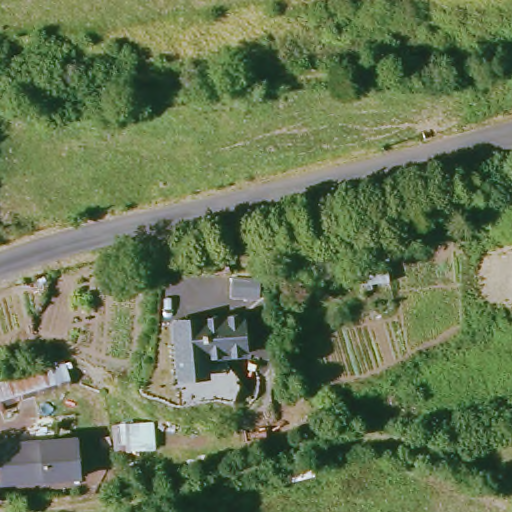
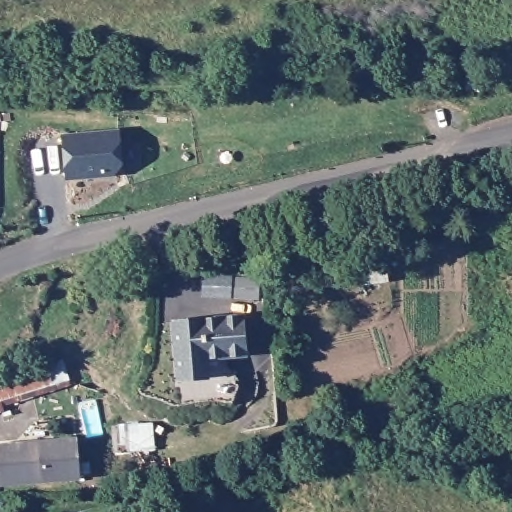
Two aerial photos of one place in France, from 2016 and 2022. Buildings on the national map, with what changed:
new [(114,131),(117,166),(112,171),(62,176),(58,135),(114,131)]
unchanged [(236,275),(262,277),(264,295),(235,294),(236,275)]
unchanged [(172,324),(239,317),(243,354),(224,356),(202,358),(205,373),(177,376),(172,324)]
unchanged [(42,369),(55,365),(62,389),(0,408),(0,377),(41,364),(42,369)]
unchanged [(149,421),(153,452),(110,458),(104,429),(149,421)]
unchanged [(80,481),(1,487),(0,472),(0,449),(77,444),(80,481)]

